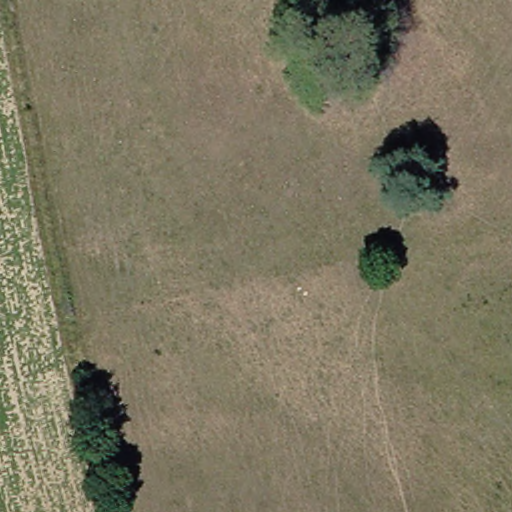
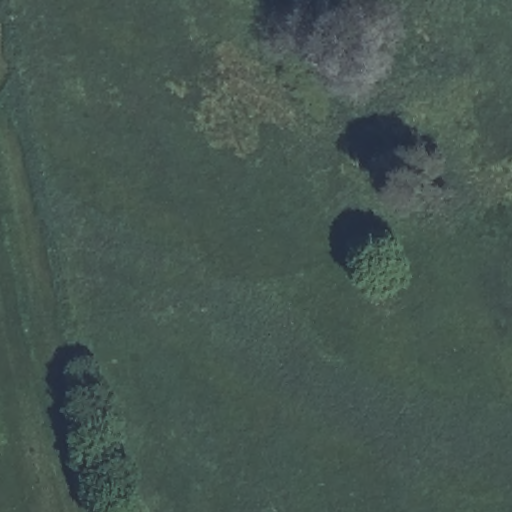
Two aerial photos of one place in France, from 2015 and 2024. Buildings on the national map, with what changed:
[]

